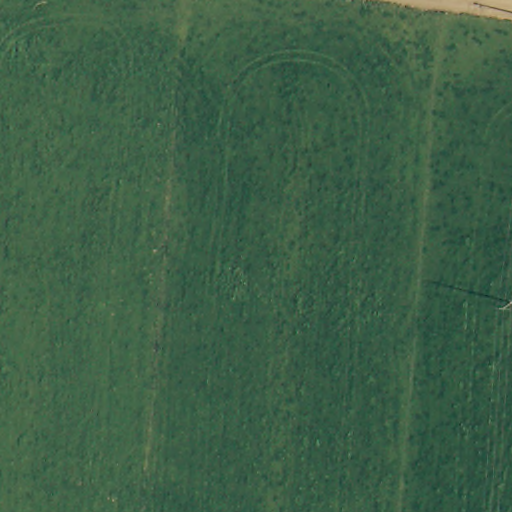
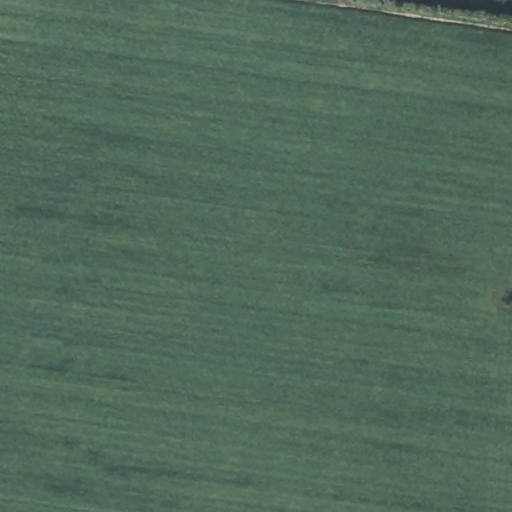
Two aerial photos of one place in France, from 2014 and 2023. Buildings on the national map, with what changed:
[]

